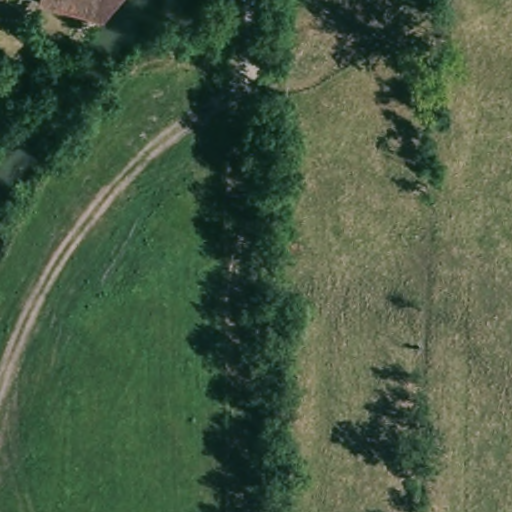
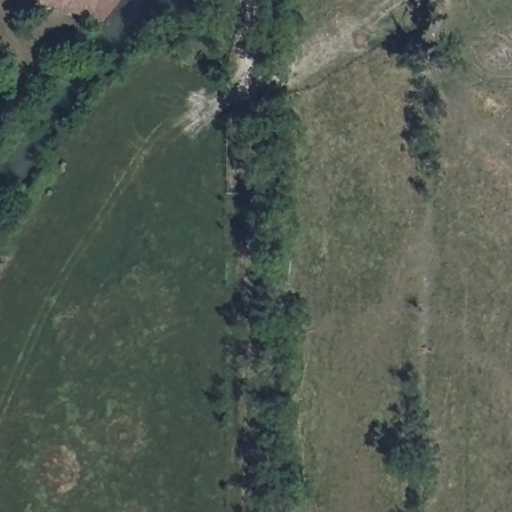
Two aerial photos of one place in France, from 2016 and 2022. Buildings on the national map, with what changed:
unchanged [(35,1),(33,0),(32,0),(108,0),(106,2),(93,17),(35,1)]

